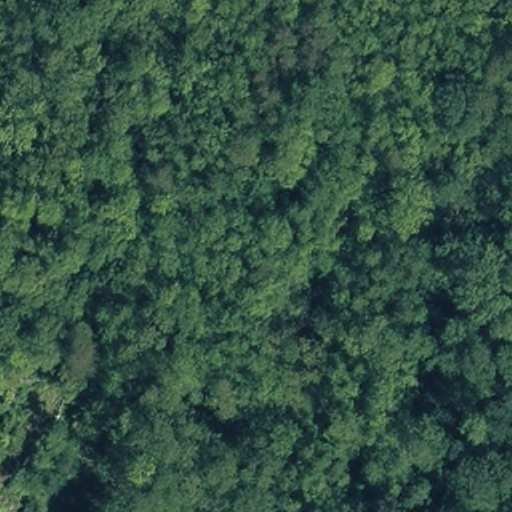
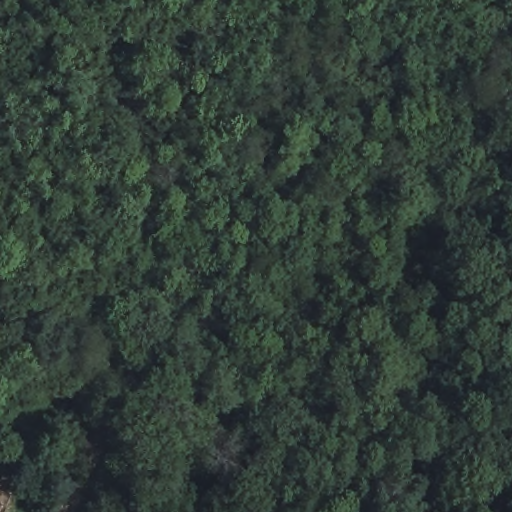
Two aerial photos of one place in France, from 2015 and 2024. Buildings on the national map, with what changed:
unchanged [(0,512),(5,500),(25,512),(0,512)]

